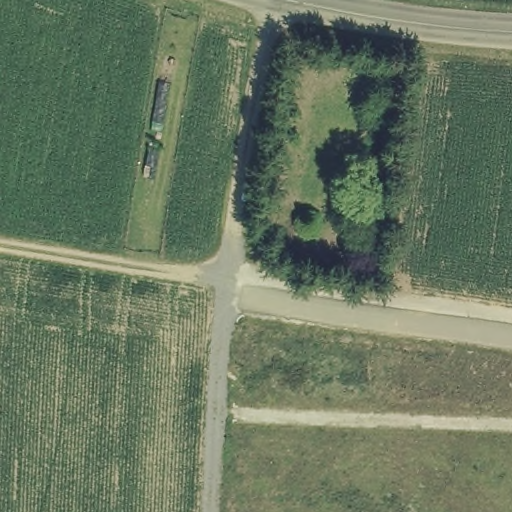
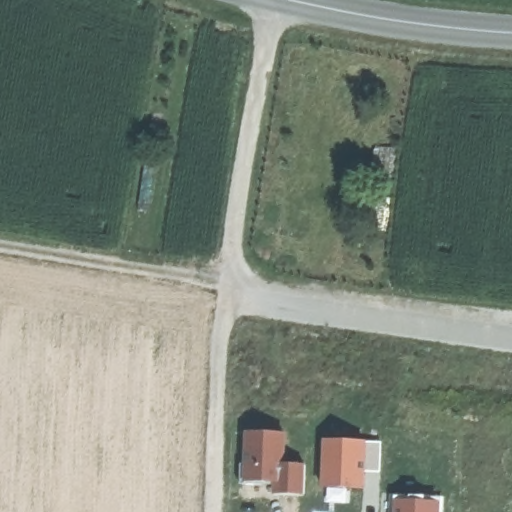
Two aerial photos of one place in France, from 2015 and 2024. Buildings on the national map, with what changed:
new [(284,432),(285,462),(304,463),(305,495),(271,494),(271,481),(242,481),(243,431),(284,432)]
new [(366,440),(383,442),(381,473),(366,472),(365,490),(320,488),(321,440),(366,440)]
new [(441,502),(441,512),(391,512),(391,501),(441,502)]

